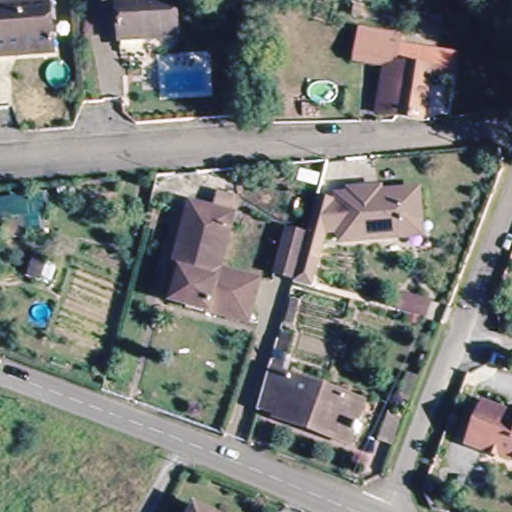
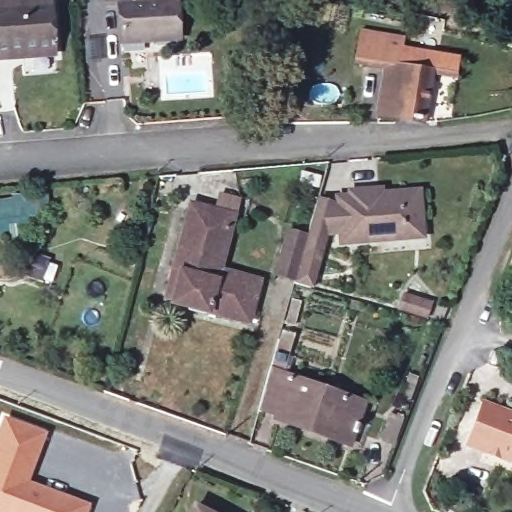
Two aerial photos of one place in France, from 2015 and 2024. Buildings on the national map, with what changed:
unchanged [(0,60),(0,2),(31,0),(51,0),(55,56),(0,60)]
unchanged [(185,40),(126,43),(124,5),(113,5),(112,0),(146,0),(182,0),(185,40)]
unchanged [(379,115),(386,68),(357,63),(362,32),(403,39),(401,49),(437,55),(457,58),(454,77),(433,73),(425,122),(379,115)]
unchanged [(308,227),(318,193),(339,199),(338,187),(350,186),(350,182),(382,179),(382,184),(420,181),(422,202),(424,227),(408,228),(342,233),(341,221),(326,222),(318,246),(311,270),(297,266),(300,257),(304,242),(308,227)]
unchanged [(209,307),(173,297),(183,261),(176,259),(192,199),(235,211),(221,266),(260,276),(254,302),(250,317),(209,307)]
unchanged [(295,270),(276,264),(289,221),(308,226),(295,270)]
unchanged [(41,282),(29,277),(36,255),(50,260),(41,282)]
unchanged [(428,317),(399,308),(403,295),(432,303),(428,317)]
unchanged [(286,368),(272,365),(279,340),(293,343),(286,368)]
unchanged [(351,446),(260,408),(271,370),(366,404),(351,446)]
unchanged [(511,461),(469,445),(485,404),(512,414),(512,458),(511,461)]
new [(89,512),(0,512),(0,442),(9,418),(48,433),(30,482),(46,488),(91,505),(89,512)]
unchanged [(220,512),(196,512),(201,502),(220,512)]

